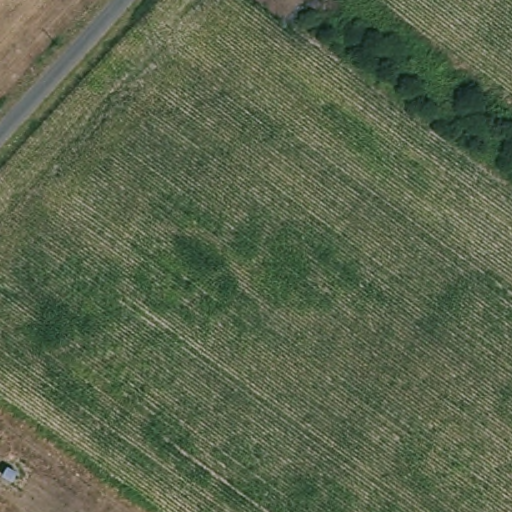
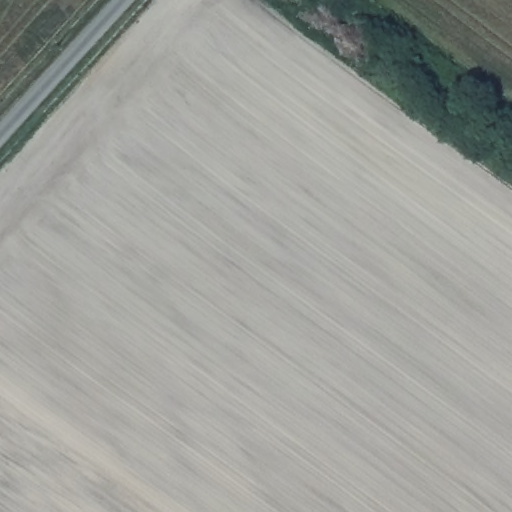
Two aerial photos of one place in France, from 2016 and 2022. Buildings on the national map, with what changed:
[]

